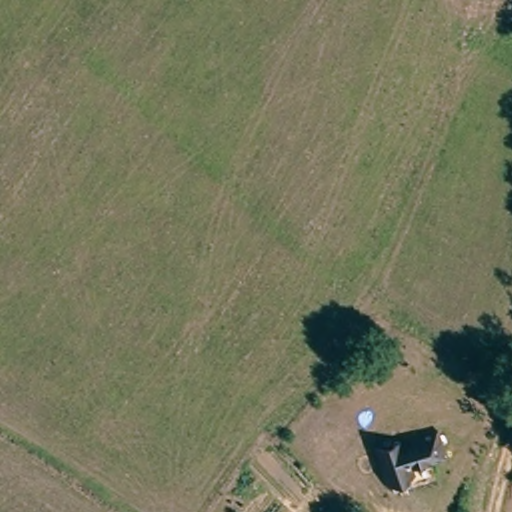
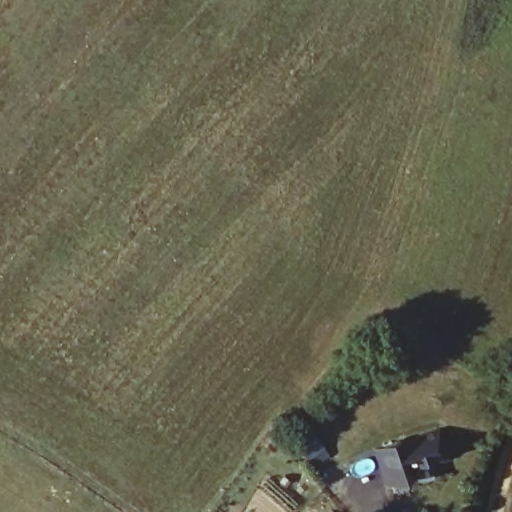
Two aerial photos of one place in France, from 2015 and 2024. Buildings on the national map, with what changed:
unchanged [(371,448),(437,434),(443,463),(405,470),(406,475),(378,479),(371,448)]

